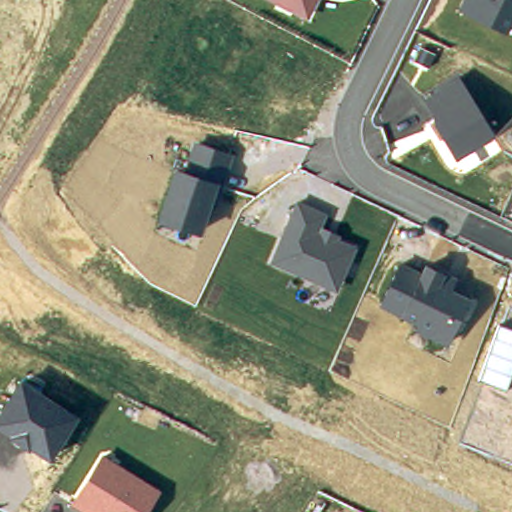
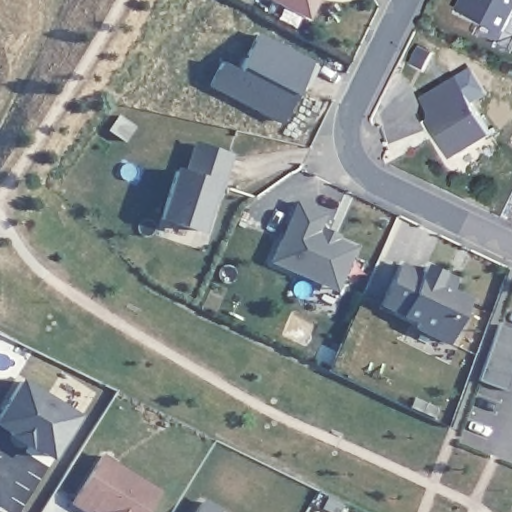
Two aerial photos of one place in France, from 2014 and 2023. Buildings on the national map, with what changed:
unchanged [(309,19),(272,0),(319,0),(309,19)]
unchanged [(512,25),(508,34),(457,10),(462,0),(512,0),(512,25)]
new [(281,124),(208,85),(220,62),(236,70),(256,31),(314,61),(281,124)]
unchanged [(494,135),(456,158),(421,100),(459,75),(494,135)]
unchanged [(174,170),(185,174),(195,142),(234,154),(226,186),(218,184),(202,233),(158,219),(174,170)]
unchanged [(329,213),(321,231),(358,246),(338,292),(269,262),(296,200),(329,213)]
unchanged [(401,262),(421,271),(424,263),(457,277),(451,289),(471,298),(449,346),(413,328),(416,321),(380,306),(401,262)]
unchanged [(512,378),(508,390),(479,379),(499,324),(512,329),(512,378)]
unchanged [(79,414),(51,460),(0,429),(0,408),(19,378),(79,414)]
unchanged [(147,512),(86,512),(71,503),(102,454),(161,489),(147,512)]
new [(221,511),(220,512),(194,512),(202,499),(221,511)]

